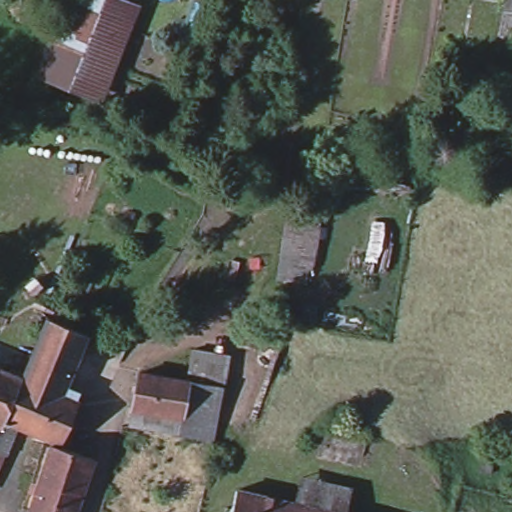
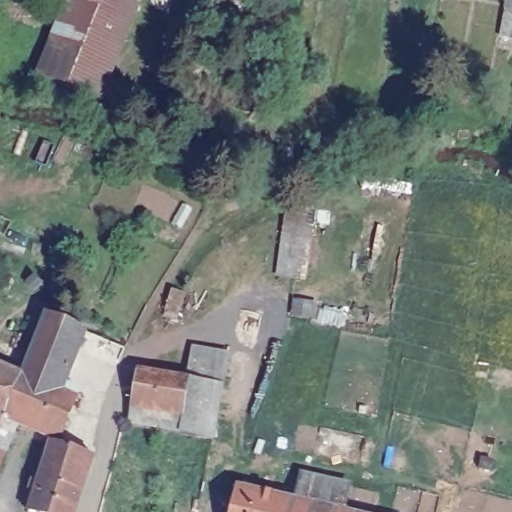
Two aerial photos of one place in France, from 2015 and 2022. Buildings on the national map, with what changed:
unchanged [(44,74),(73,0),(133,0),(94,95),(66,84),(44,74)]
unchanged [(512,18),(502,16),(505,0),(512,0),(512,18)]
unchanged [(322,205),(318,240),(308,238),(302,281),(275,276),(285,201),(322,205)]
unchanged [(50,315),(89,333),(66,385),(80,391),(60,440),(7,418),(24,376),(50,315)]
unchanged [(189,372),(192,351),(227,356),(217,432),(179,425),(182,410),(189,372)]
unchanged [(10,370),(12,363),(20,366),(17,373),(24,376),(7,418),(0,434),(0,366),(10,370)]
unchanged [(179,425),(132,419),(135,401),(141,365),(189,372),(182,410),(179,425)]
unchanged [(76,512),(30,512),(34,500),(25,496),(45,441),(52,443),(52,441),(95,456),(76,512)]
unchanged [(0,468),(0,449),(7,451),(0,468)]
unchanged [(294,500),(299,473),(350,485),(343,512),(294,500)]
unchanged [(343,512),(232,512),(237,486),(294,500),(343,512)]

